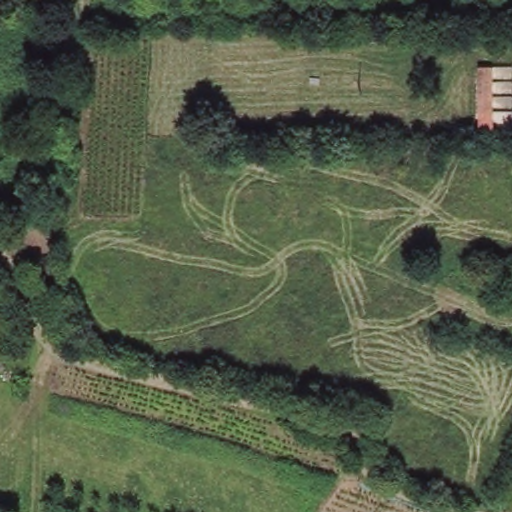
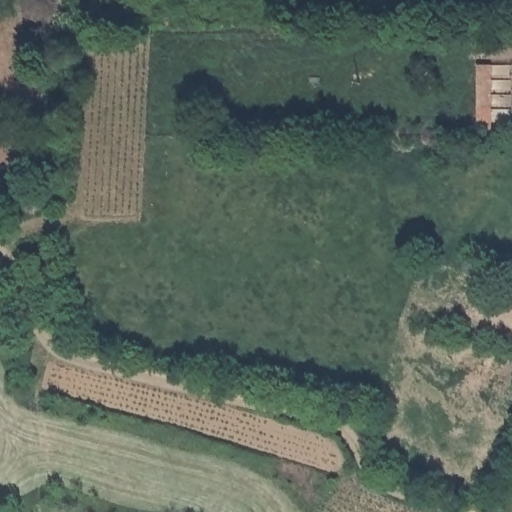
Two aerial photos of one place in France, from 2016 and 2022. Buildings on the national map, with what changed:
unchanged [(477,65),(510,66),(508,111),(476,115),(477,65)]

